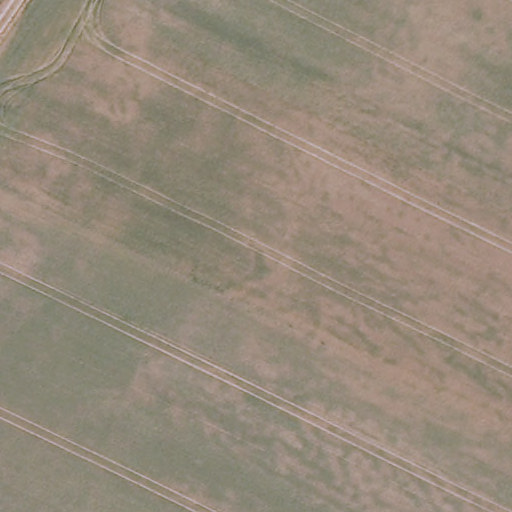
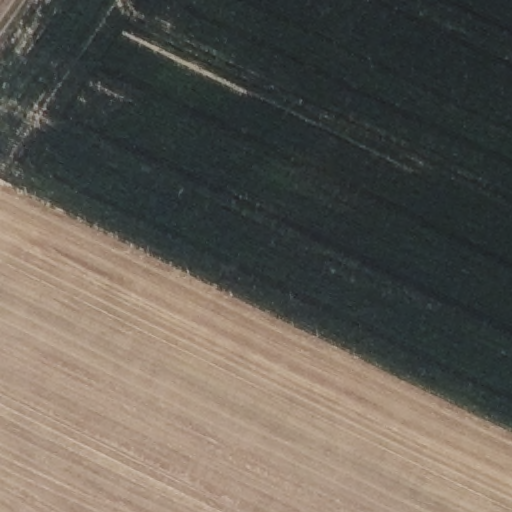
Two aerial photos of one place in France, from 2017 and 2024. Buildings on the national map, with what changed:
[]

